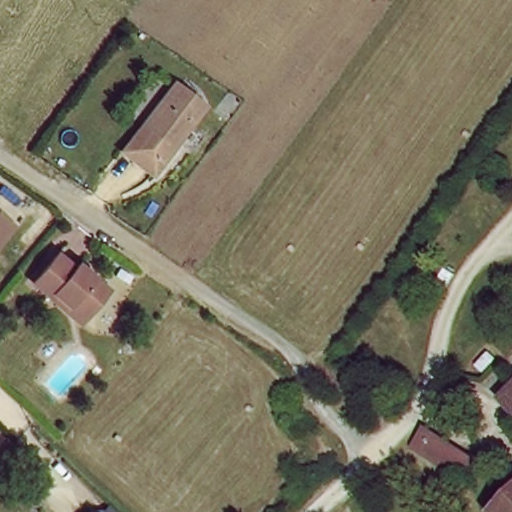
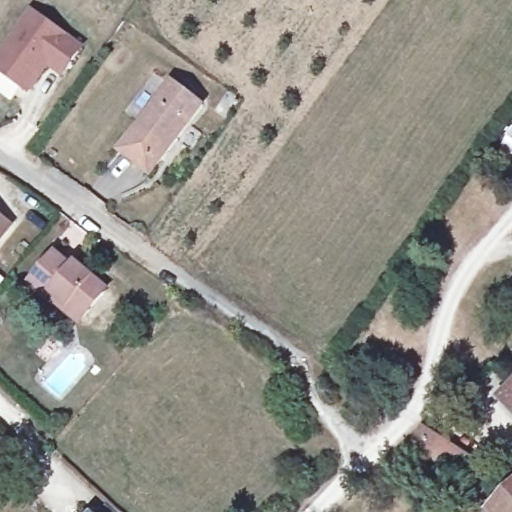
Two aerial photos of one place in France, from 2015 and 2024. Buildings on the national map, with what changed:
new [(32,9),(85,47),(62,80),(48,69),(28,96),(0,75),(0,53),(32,9)]
unchanged [(172,80),(202,104),(169,147),(139,122),(172,80)]
unchanged [(169,147),(149,172),(119,148),(139,122),(169,147)]
unchanged [(17,230),(0,250),(0,215),(17,230)]
unchanged [(72,267),(75,263),(104,288),(82,316),(52,292),(50,295),(32,282),(55,253),(72,267)]
unchanged [(512,392),(512,408),(504,400),(512,392)]
unchanged [(416,451),(429,439),(451,462),(438,474),(416,451)]
unchanged [(512,512),(511,512),(505,506),(512,498),(512,512)]
unchanged [(505,506),(511,512),(499,512),(505,506)]

